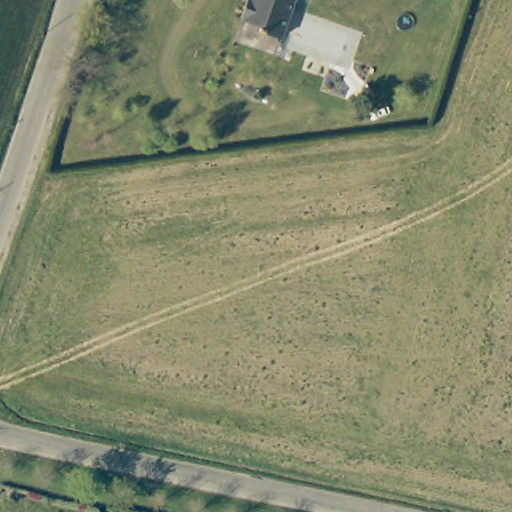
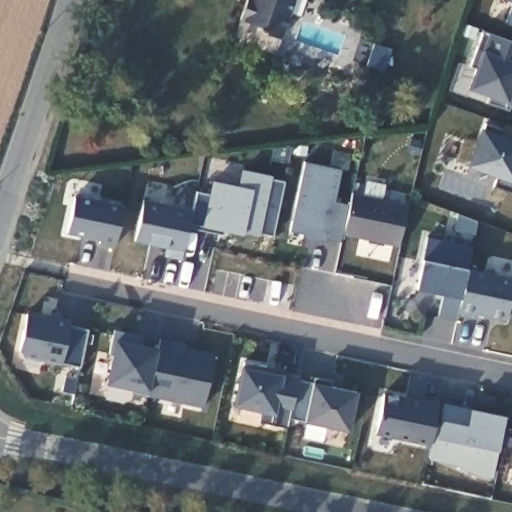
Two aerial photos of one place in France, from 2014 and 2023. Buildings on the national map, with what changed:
unchanged [(258,27),(239,21),(246,0),(293,0),(280,40),(256,32),(258,27)]
new [(512,2),(506,0),(512,0),(512,2)]
new [(512,3),(512,25),(504,22),(512,3)]
new [(470,66),(483,31),(512,42),(512,90),(508,100),(511,101),(507,110),(486,102),(490,96),(467,87),(475,69),(470,66)]
new [(498,177),(466,166),(481,128),(512,140),(512,193),(494,186),(498,177)]
new [(341,170),(334,203),(348,205),(352,192),(408,204),(398,247),(342,235),(340,241),(328,238),(326,243),(304,238),(305,235),(290,231),(305,161),(341,170)]
new [(192,210),(197,192),(209,195),(212,181),(238,185),(242,169),(273,175),(259,236),(244,234),(243,235),(223,231),(222,234),(189,227),(182,261),(164,257),(167,247),(134,241),(144,199),(192,210)]
new [(124,205),(115,248),(98,245),(98,240),(65,234),(75,195),(124,205)]
new [(467,267),(512,277),(512,295),(506,320),(476,314),(475,320),(457,316),(456,320),(438,317),(442,295),(415,290),(428,237),(472,246),(467,267)]
new [(41,316),(41,313),(70,320),(69,325),(88,330),(80,366),(62,363),(61,365),(24,357),(19,348),(27,313),(41,316)]
new [(111,355),(108,353),(114,329),(144,335),(142,345),(157,347),(159,338),(186,344),(186,348),(215,353),(203,408),(131,393),(132,390),(105,383),(111,355)]
new [(242,367),(243,362),(299,375),(298,380),(313,383),(314,377),(332,380),(332,386),(358,391),(349,431),(304,422),(289,417),(287,427),(260,421),(262,411),(232,406),(242,367)]
new [(384,393),(441,405),(442,402),(507,415),(492,479),(477,476),(451,464),(426,460),(430,445),(374,435),(384,393)]

